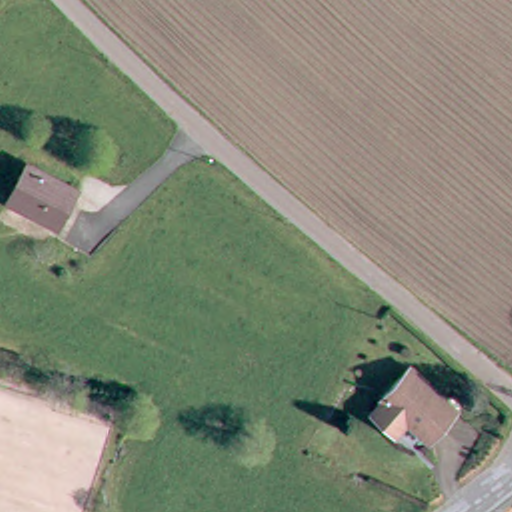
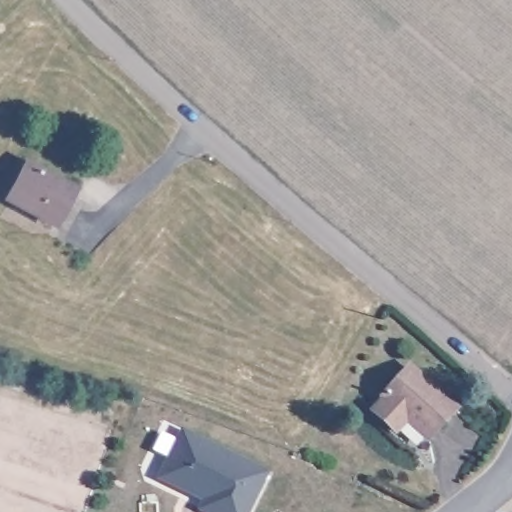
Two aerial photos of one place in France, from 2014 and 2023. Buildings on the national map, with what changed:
unchanged [(54,224),(7,195),(28,160),(75,191),(54,224)]
unchanged [(388,416),(370,398),(404,357),(451,397),(427,427),(404,408),(394,421),(388,416)]
new [(254,512),(196,512),(198,505),(150,481),(177,424),(275,470),(254,512)]

